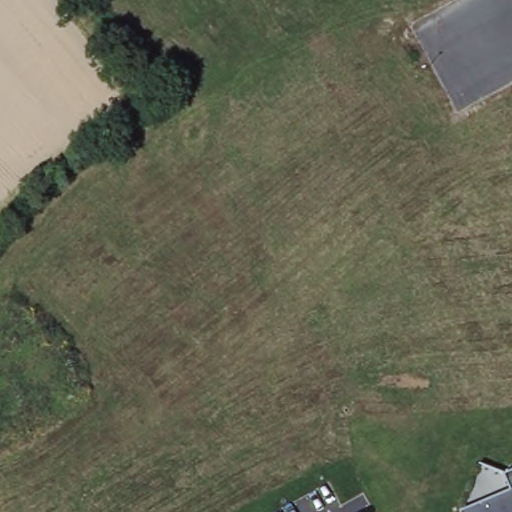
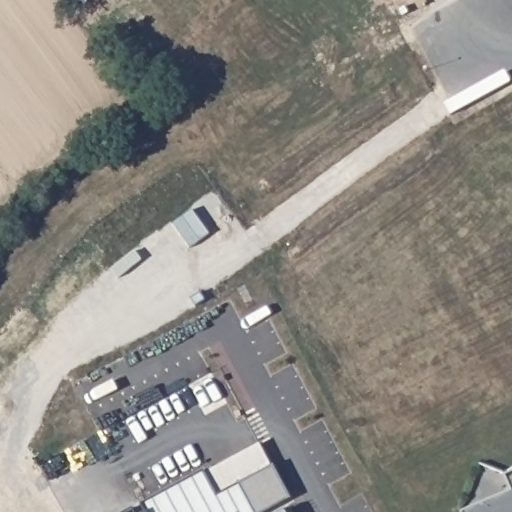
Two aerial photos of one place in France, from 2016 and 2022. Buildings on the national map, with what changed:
new [(204,468),(217,493),(273,463),(291,497),(262,512),(145,512),(139,502),(204,468)]
unchanged [(462,511),(512,490),(505,472),(512,469),(512,512),(463,512),(462,511)]

